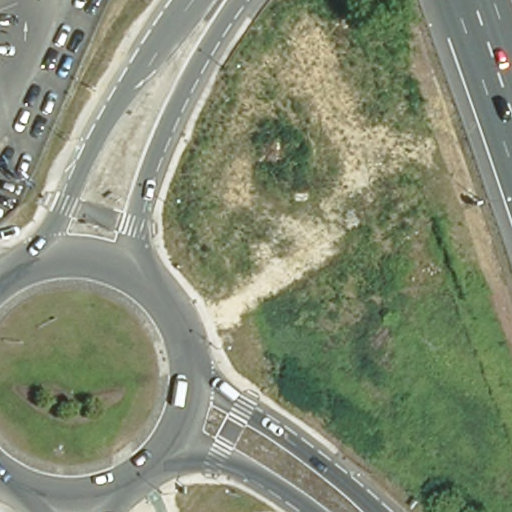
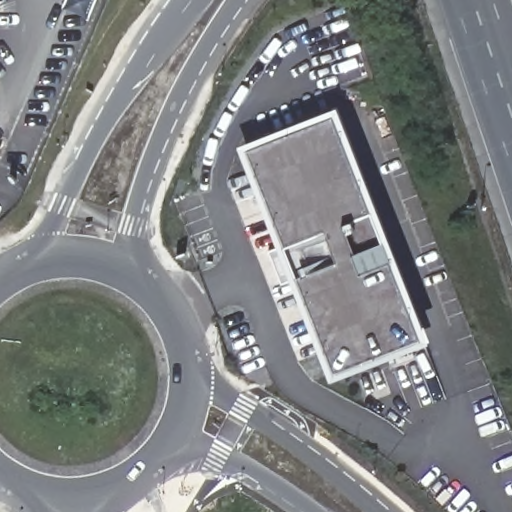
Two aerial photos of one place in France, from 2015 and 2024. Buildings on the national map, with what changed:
new [(429,341),(329,379),(238,143),(337,105),(429,341)]

